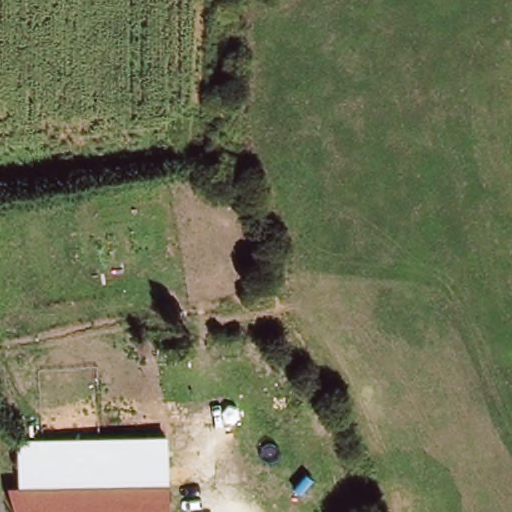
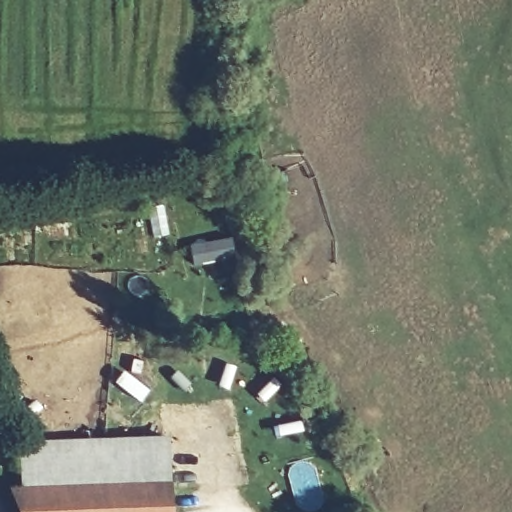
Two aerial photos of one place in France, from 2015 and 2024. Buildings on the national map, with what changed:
new [(232,258),(195,266),(191,245),(230,237),(232,258)]
unchanged [(171,484),(59,488),(25,489),(23,443),(78,441),(170,439),(171,484)]
unchanged [(59,488),(171,484),(172,512),(24,512),(15,489),(25,489),(59,488)]

